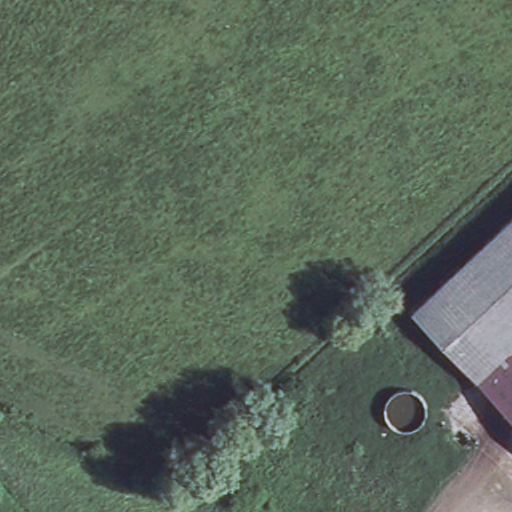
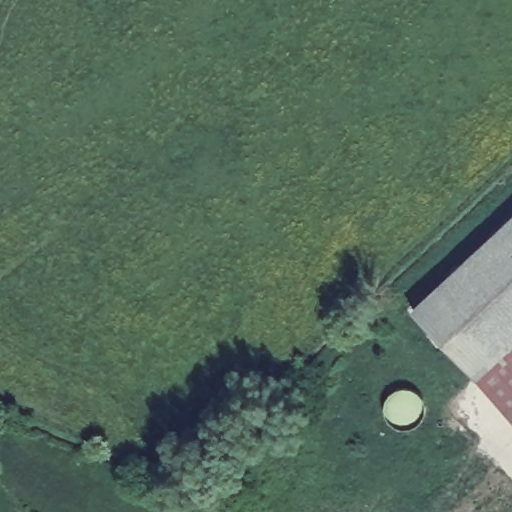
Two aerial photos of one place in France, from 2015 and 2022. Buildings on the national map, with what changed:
unchanged [(503,403),(472,369),(413,303),(512,213),(512,395),(503,403)]
unchanged [(503,403),(512,395),(512,413),(503,403)]

